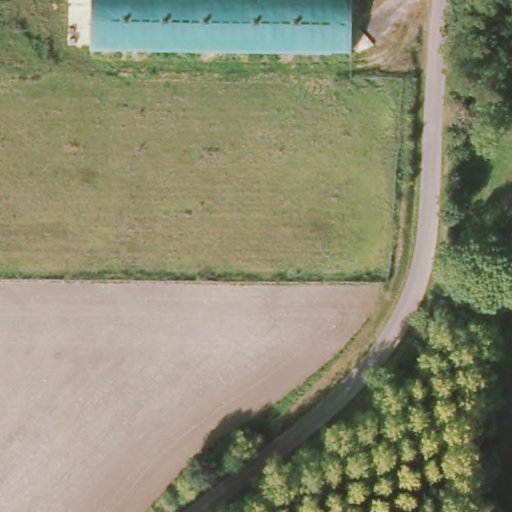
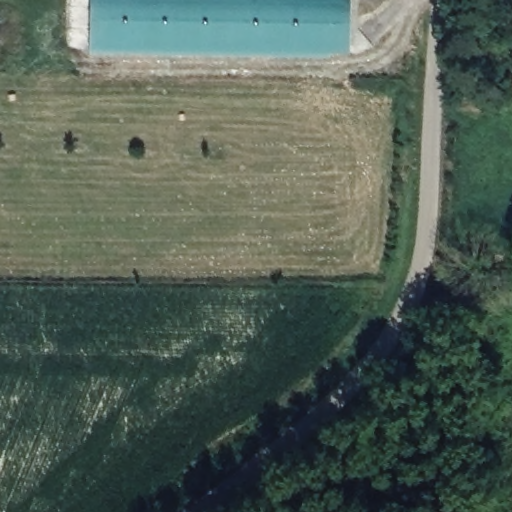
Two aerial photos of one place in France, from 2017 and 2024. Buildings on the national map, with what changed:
unchanged [(95,46),(95,0),(354,0),(350,51),(95,46)]

